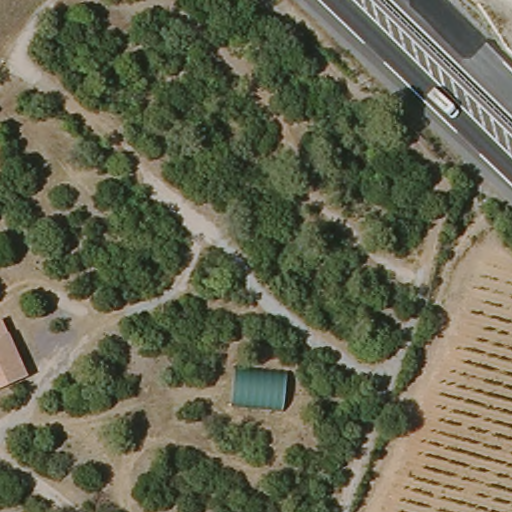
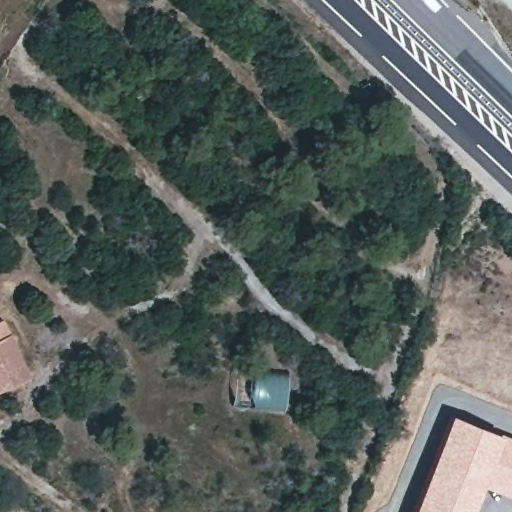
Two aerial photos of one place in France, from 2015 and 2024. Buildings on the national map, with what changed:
unchanged [(0,388),(0,324),(23,377),(0,388)]
unchanged [(292,378),(288,409),(237,401),(241,372),(292,378)]
new [(512,437),(512,499),(490,490),(492,481),(483,480),(470,512),(409,512),(450,413),(512,437)]

